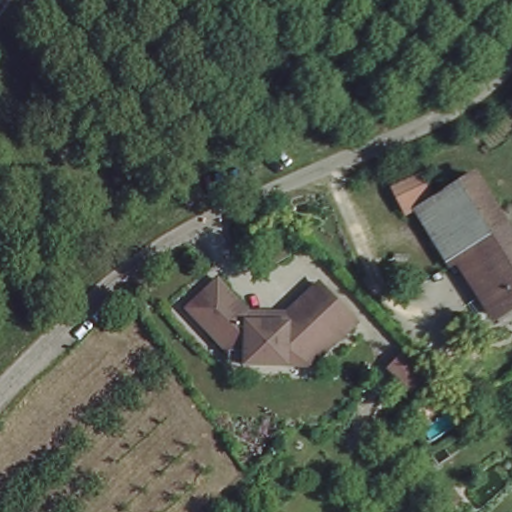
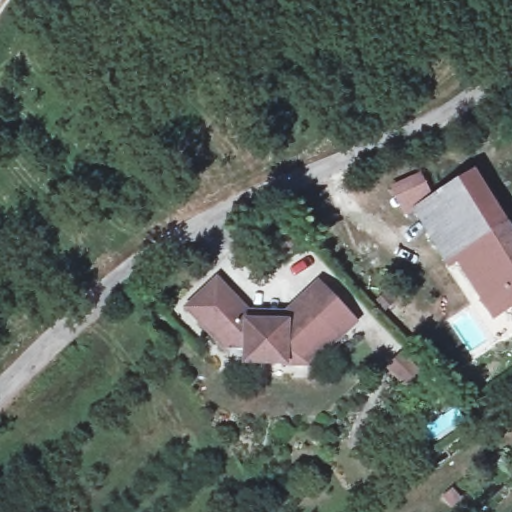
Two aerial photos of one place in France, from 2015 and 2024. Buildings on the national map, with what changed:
unchanged [(476,173),(507,230),(479,245),(455,257),(444,264),(416,214),(406,219),(401,210),(392,194),(424,176),(433,193),(435,196),(476,173)]
unchanged [(511,305),(479,245),(507,230),(512,240),(512,305),(511,305)]
unchanged [(511,305),(512,308),(512,316),(492,326),(482,308),(455,257),(479,245),(511,305)]
unchanged [(191,311),(182,302),(211,274),(228,292),(243,308),(279,308),(313,276),(350,315),(316,347),(304,358),(280,358),(240,357),(223,357),(223,350),(218,350),(218,340),(191,311)]

